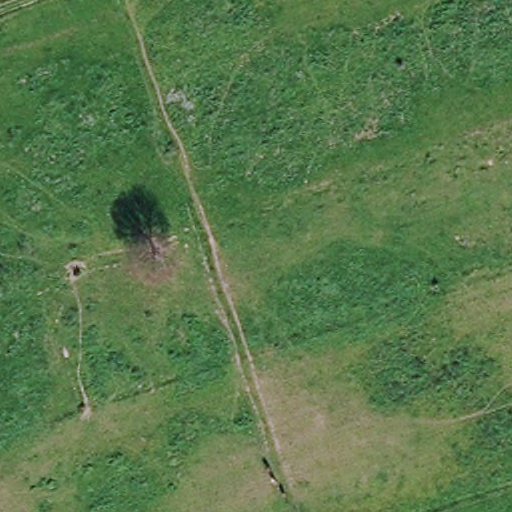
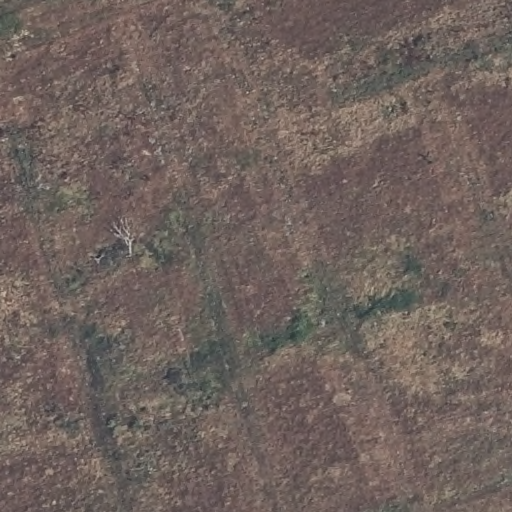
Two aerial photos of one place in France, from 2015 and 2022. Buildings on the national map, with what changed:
[]

